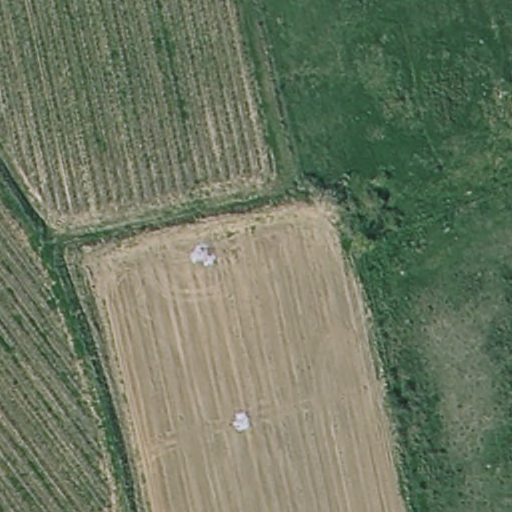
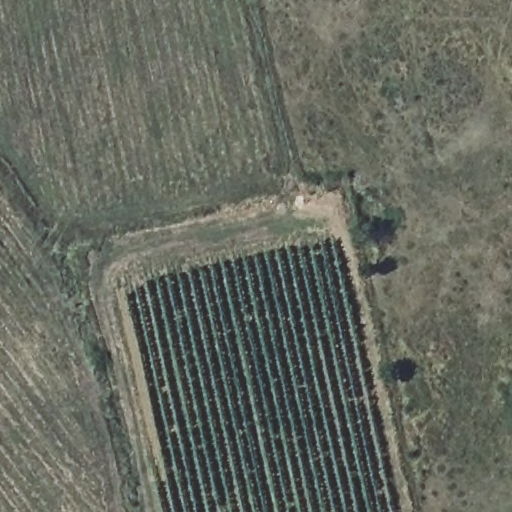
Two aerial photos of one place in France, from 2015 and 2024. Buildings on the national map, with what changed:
[]

